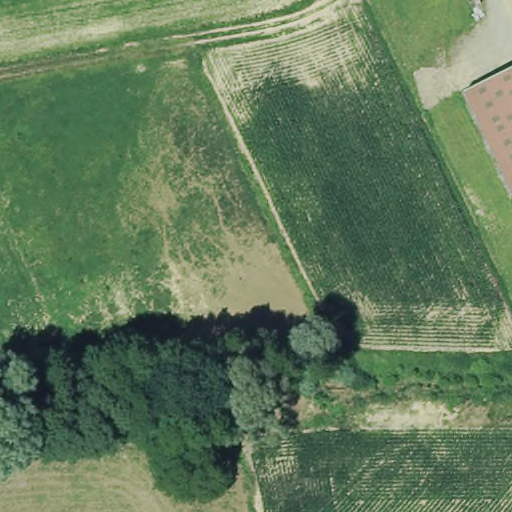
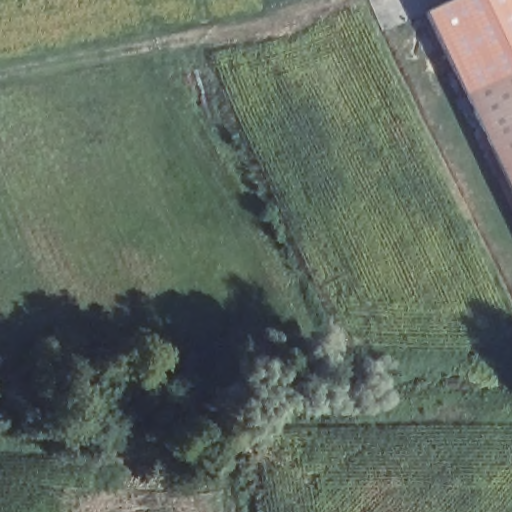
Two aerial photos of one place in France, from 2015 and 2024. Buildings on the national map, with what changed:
new [(453,0),(512,0),(512,71),(464,93),(425,13),(453,0)]
unchanged [(512,194),(464,93),(512,71),(512,194)]

